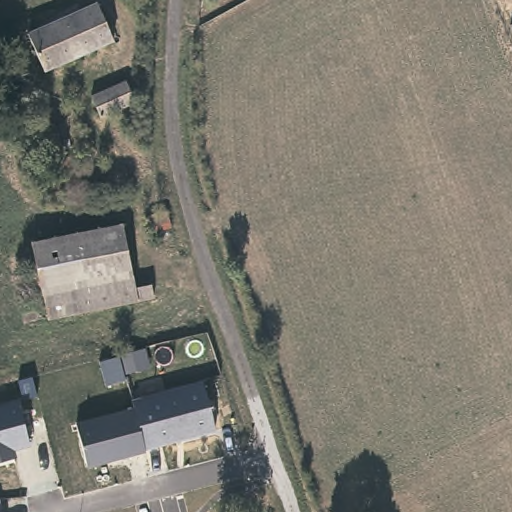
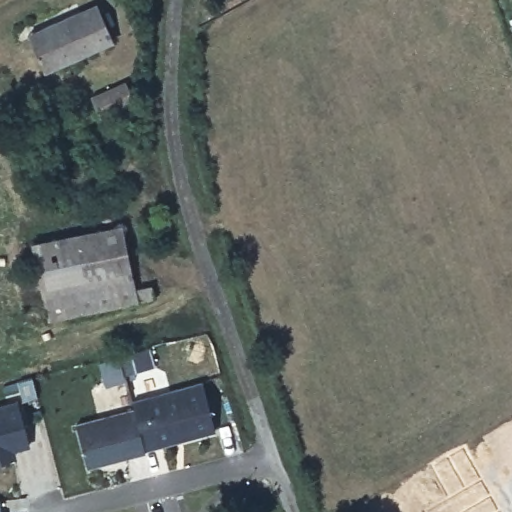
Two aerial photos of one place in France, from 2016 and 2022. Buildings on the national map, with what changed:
unchanged [(113,44),(48,75),(31,37),(96,6),(113,44)]
unchanged [(132,101),(99,117),(88,97),(122,79),(132,101)]
unchanged [(129,279),(45,300),(31,247),(116,225),(129,279)]
unchanged [(132,292),(149,288),(152,299),(51,326),(45,300),(129,279),(132,292)]
unchanged [(124,372),(126,381),(103,385),(97,362),(117,356),(147,348),(150,367),(124,372)]
unchanged [(216,430),(144,451),(88,466),(75,425),(136,409),(135,401),(202,383),(216,430)]
unchanged [(16,458),(0,462),(0,406),(17,402),(30,443),(14,446),(16,458)]
unchanged [(0,502),(3,512),(0,512),(0,502)]

